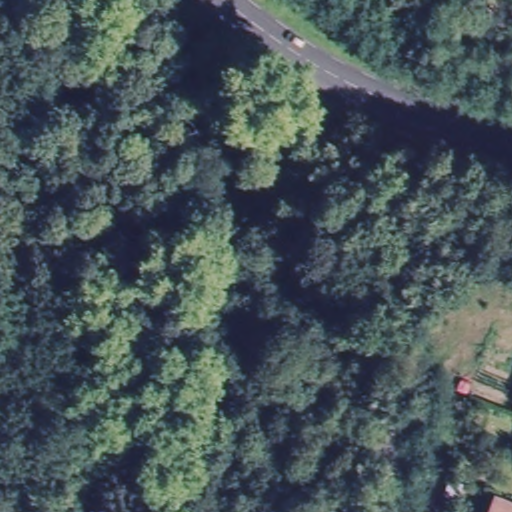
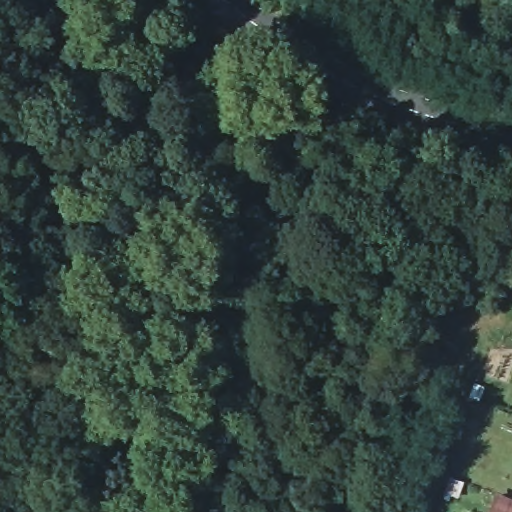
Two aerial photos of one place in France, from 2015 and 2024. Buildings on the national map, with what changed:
unchanged [(502,502),(512,506),(512,512),(498,512),(502,502)]

